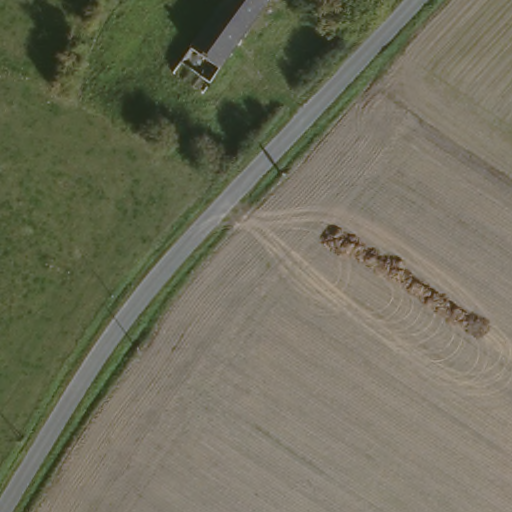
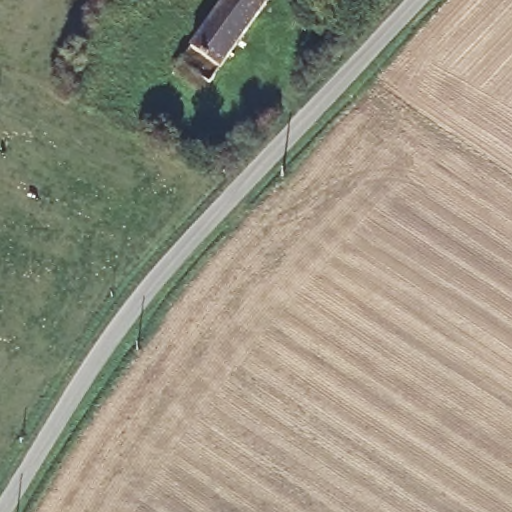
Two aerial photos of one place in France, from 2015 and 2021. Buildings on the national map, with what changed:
unchanged [(201,95),(173,75),(225,0),(268,0),(201,95)]

